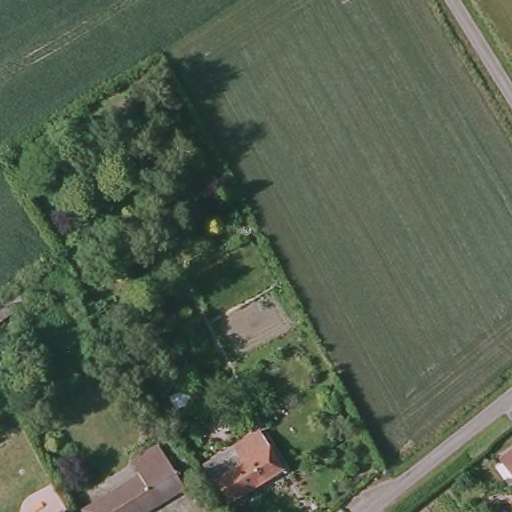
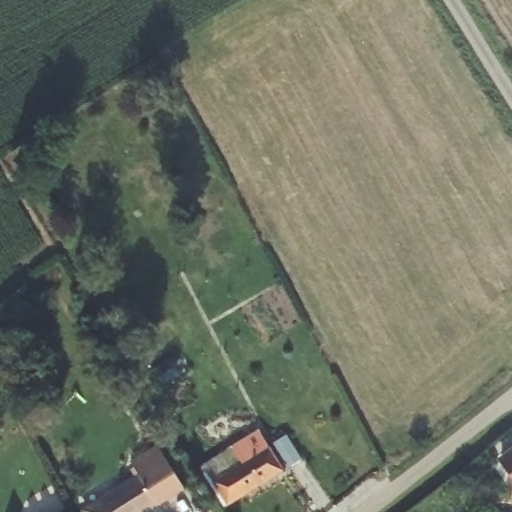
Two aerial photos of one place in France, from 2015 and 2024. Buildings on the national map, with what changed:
unchanged [(28,283),(35,295),(0,317),(0,301),(28,283)]
unchanged [(206,460),(221,451),(221,452),(223,455),(260,433),(283,474),(227,507),(201,463),(206,460)]
unchanged [(159,451),(193,501),(176,512),(85,512),(138,480),(131,467),(159,451)]
unchanged [(512,456),(512,475),(504,462),(512,456)]

